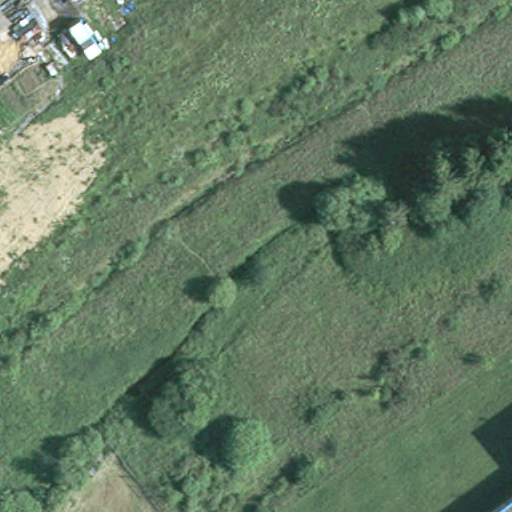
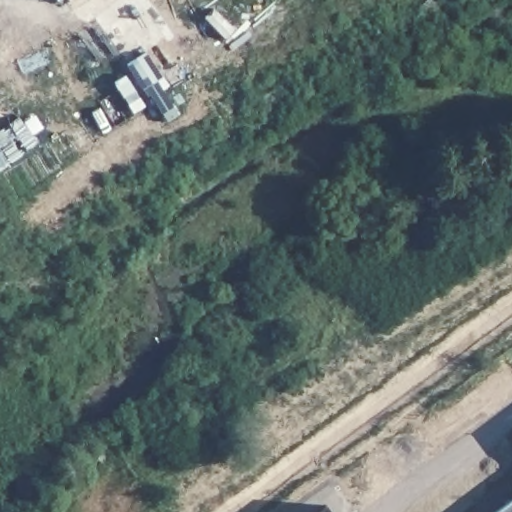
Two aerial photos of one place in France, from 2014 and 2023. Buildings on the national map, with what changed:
unchanged [(512,512),(488,512),(512,494),(512,512)]

